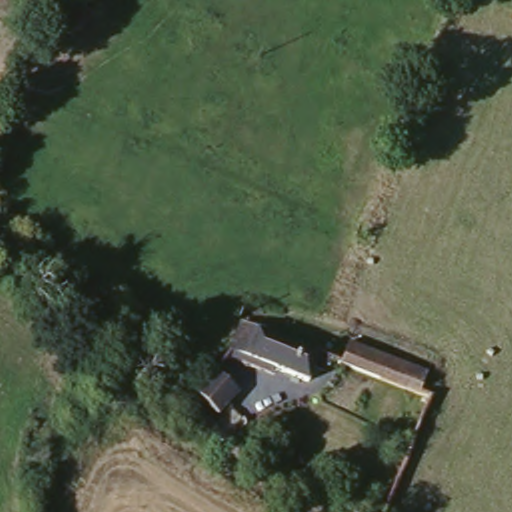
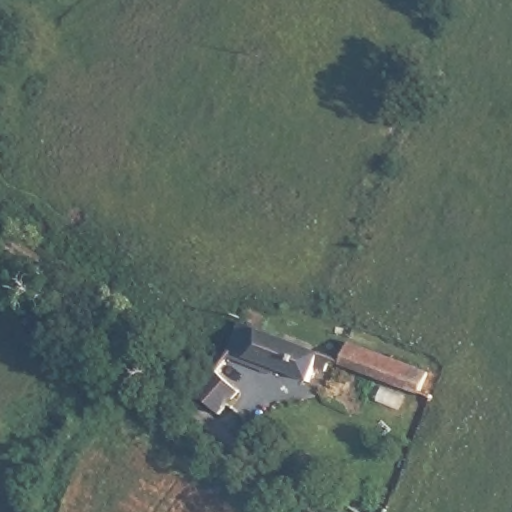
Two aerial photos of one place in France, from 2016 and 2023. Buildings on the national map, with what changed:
unchanged [(245,324),(325,354),(324,356),(334,361),(328,372),(317,367),(311,382),(235,352),(245,324)]
unchanged [(431,374),(424,394),(345,366),(353,343),(431,374)]
unchanged [(202,379),(215,366),(235,385),(218,411),(195,388),(194,386),(202,379)]
unchanged [(310,469),(307,476),(294,468),(298,461),(310,469)]

